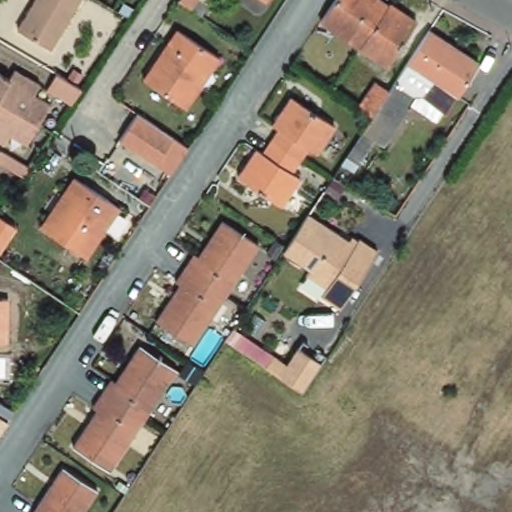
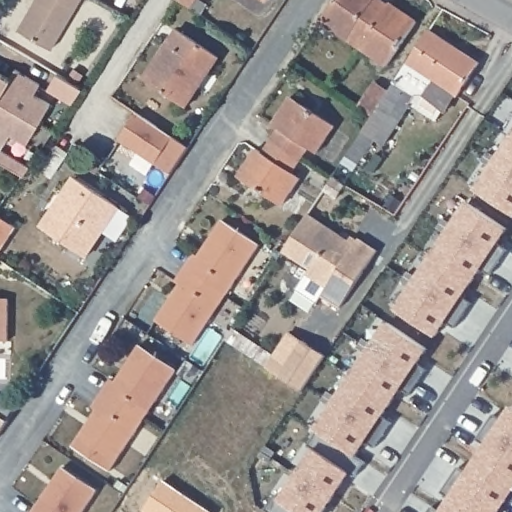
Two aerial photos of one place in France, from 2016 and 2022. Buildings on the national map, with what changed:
unchanged [(52,50),(18,28),(35,0),(82,0),(52,50)]
unchanged [(190,7),(180,0),(202,0),(206,3),(200,14),(190,7)]
unchanged [(395,10),(414,21),(385,65),(356,46),(352,44),(320,22),(335,0),(381,0),(380,3),(384,5),(394,12),(395,10)]
unchanged [(360,127),(369,115),(352,104),(367,81),(385,91),(425,29),(475,62),(454,94),(451,93),(442,107),(422,93),(412,92),(397,115),(380,140),(360,127)]
unchanged [(216,60),(183,107),(142,81),(175,32),(216,60)]
unchanged [(34,123),(22,142),(7,134),(0,145),(0,76),(6,80),(11,70),(36,84),(30,95),(45,104),(34,123)]
unchanged [(70,101),(67,105),(42,89),(51,74),(77,90),(70,101)]
unchanged [(277,132),(270,126),(288,99),(332,128),(315,155),(306,150),(298,161),(296,165),(290,174),(298,179),(280,205),(237,177),(255,150),(262,155),(268,145),(270,144),(277,132)]
unchanged [(120,140),(125,134),(139,112),(190,145),(175,166),(170,174),(120,140)]
new [(512,134),(512,214),(475,190),(512,134)]
unchanged [(26,166),(21,175),(0,162),(0,150),(26,166)]
unchanged [(90,252),(45,222),(78,174),(122,204),(90,252)]
new [(395,310),(467,201),(510,230),(499,245),(506,250),(490,275),(483,270),(465,298),(470,302),(455,327),(448,323),(438,338),(395,310)]
unchanged [(339,308),(300,285),(308,270),(282,252),(308,213),(348,239),(351,235),(377,250),(339,308)]
unchanged [(16,231),(0,254),(0,220),(16,231)]
unchanged [(192,252),(198,256),(221,220),(258,244),(225,294),(192,345),(155,320),(180,283),(175,280),(184,266),(192,252)]
unchanged [(7,304),(5,331),(0,331),(0,303),(7,304)]
new [(275,495),(279,498),(312,448),(308,446),(318,430),(315,427),(386,321),(428,349),(418,364),(426,369),(410,394),(402,389),(383,417),(390,422),(375,447),(366,442),(357,456),(365,461),(355,476),(351,473),(325,512),(268,512),(265,510),(275,495)]
unchanged [(115,380),(138,345),(175,369),(143,420),(111,469),(74,445),(97,408),(92,405),(101,391),(110,377),(115,380)]
unchanged [(266,366),(273,354),(286,362),(297,347),(321,362),(302,391),(266,366)]
unchanged [(0,430),(0,405),(12,411),(0,430)]
new [(439,511),(449,497),(442,492),(458,468),(465,473),(485,444),(477,440),(493,416),(500,420),(510,405),(512,406),(512,495),(501,512),(428,512),(431,507),(439,511)]
unchanged [(97,490),(82,512),(33,512),(62,467),(97,490)]

